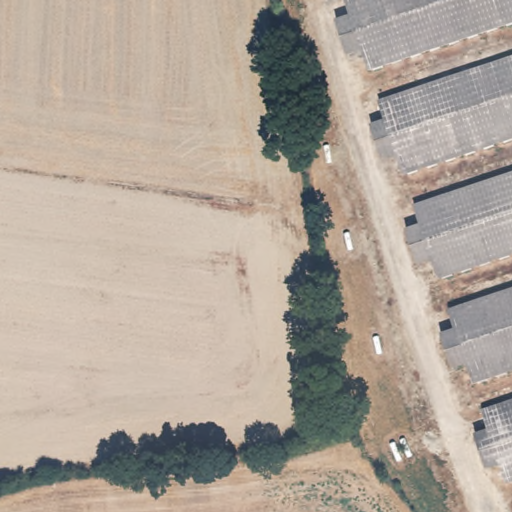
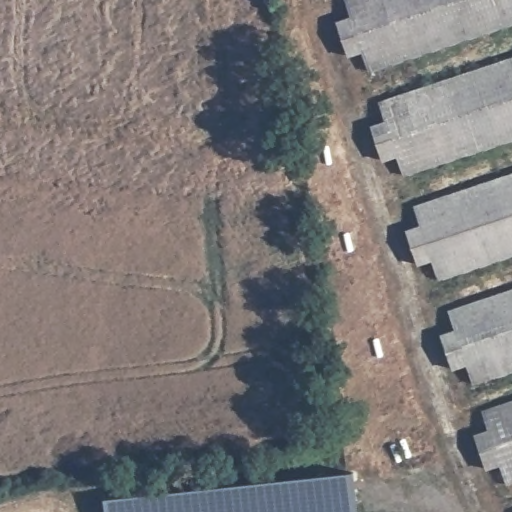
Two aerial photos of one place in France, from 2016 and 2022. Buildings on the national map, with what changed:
unchanged [(364,48),(347,52),(337,21),(353,17),(348,0),(512,0),(512,22),(370,70),(364,48)]
unchanged [(400,180),(393,158),(377,162),(366,130),(382,125),(376,103),(512,58),(512,142),(400,180)]
unchanged [(512,173),(512,257),(435,283),(429,262),(411,266),(401,234),(417,229),(411,207),(512,173)]
unchanged [(512,288),(512,372),(480,382),(473,362),(455,366),(446,333),(462,328),(455,307),(512,288)]
unchanged [(505,485),(500,467),(484,472),(472,435),(488,430),(480,411),(512,400),(512,483),(505,485)]
new [(105,498),(353,472),(357,512),(106,512),(105,498)]

